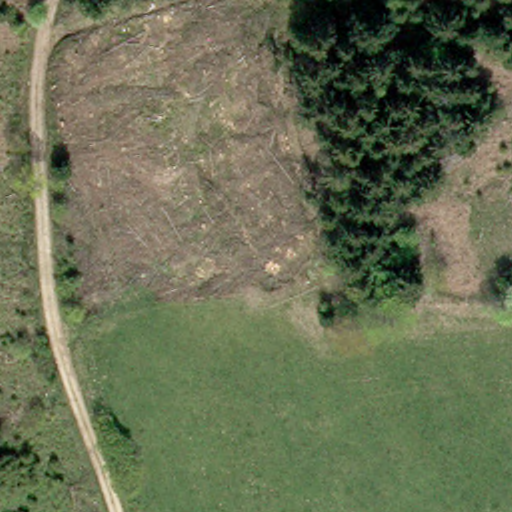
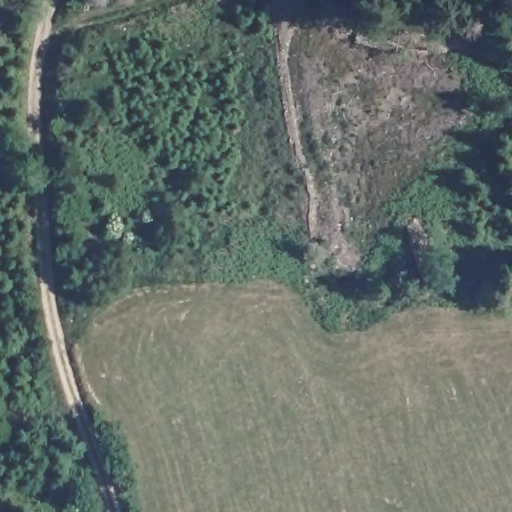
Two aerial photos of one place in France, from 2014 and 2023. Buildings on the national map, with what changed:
unchanged [(101,496),(106,512),(71,512),(67,488),(94,483),(101,496)]

